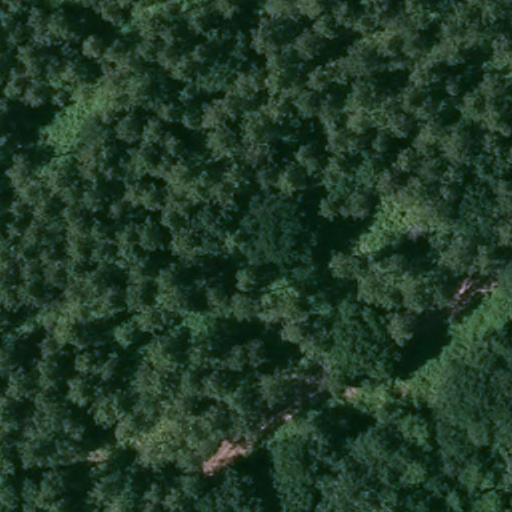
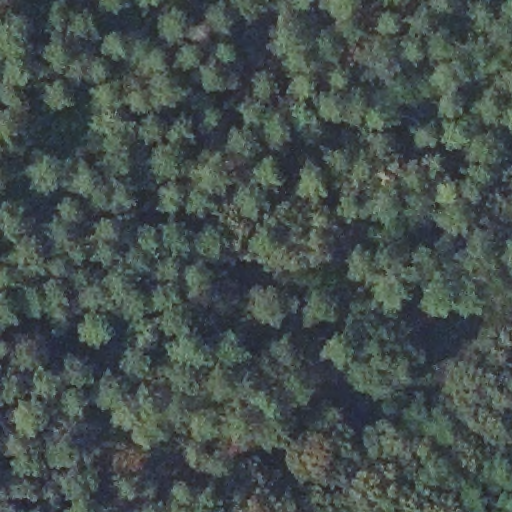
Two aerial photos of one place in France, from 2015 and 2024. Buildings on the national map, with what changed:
unchanged [(386,383),(446,385),(445,426),(384,420),(386,383)]

